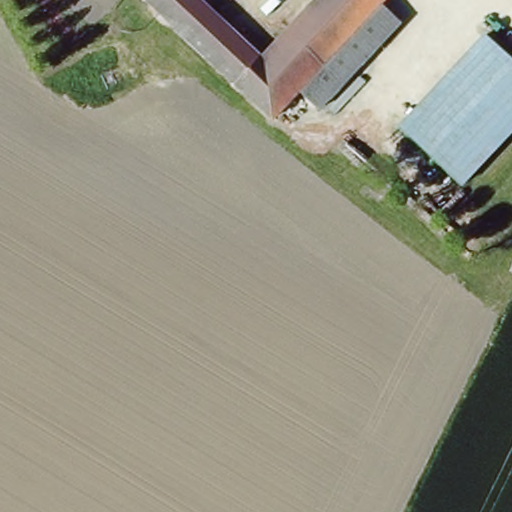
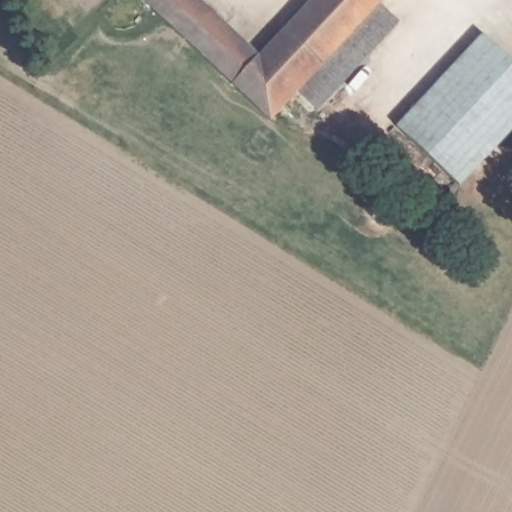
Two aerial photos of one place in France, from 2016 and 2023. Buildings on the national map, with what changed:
unchanged [(313,0),(381,0),(302,91),(276,121),(171,21),(149,0),(200,0),(261,56),(313,0)]
unchanged [(382,0),(401,20),(325,111),(302,91),(381,0),(382,0)]
unchanged [(512,139),(462,193),(401,129),(487,27),(512,51),(512,139)]

